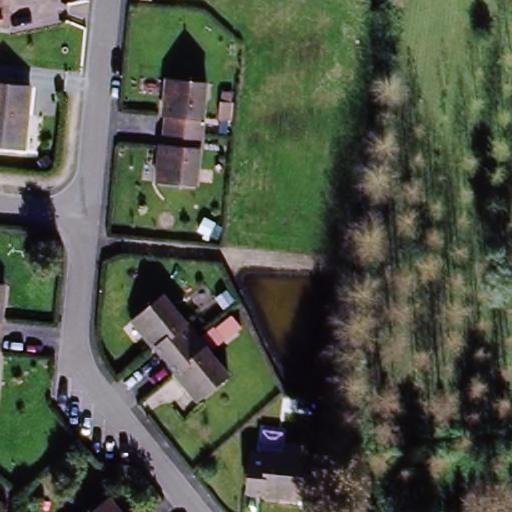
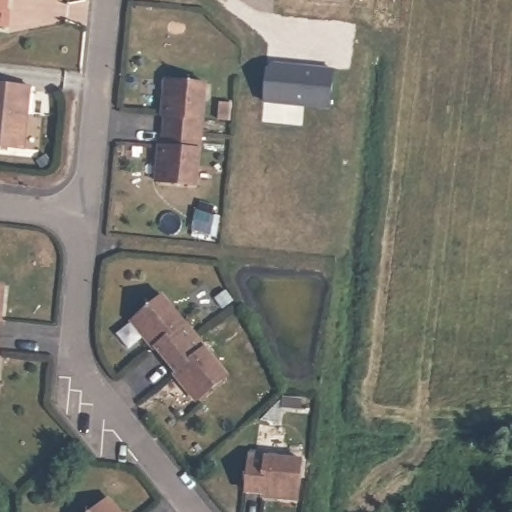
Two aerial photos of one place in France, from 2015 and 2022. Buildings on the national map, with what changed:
unchanged [(0,0),(7,0),(5,10),(8,11),(5,27),(0,26),(0,0)]
new [(332,111),(265,104),(270,64),(335,70),(332,111)]
unchanged [(22,145),(0,143),(0,79),(30,84),(22,145)]
unchanged [(204,84),(197,135),(164,130),(165,115),(163,114),(167,79),(204,84)]
unchanged [(190,187),(154,180),(159,144),(162,144),(164,130),(197,135),(190,187)]
unchanged [(0,307),(0,287),(2,288),(0,307)]
unchanged [(190,334),(160,353),(152,340),(150,342),(131,312),(162,292),(190,334)]
unchanged [(190,334),(217,376),(187,397),(167,367),(169,365),(160,353),(190,334)]
unchanged [(270,499),(270,502),(252,498),(253,492),(259,460),(260,459),(267,461),(304,468),(302,479),(299,504),(270,499)]
unchanged [(107,498),(117,512),(89,512),(107,498)]

